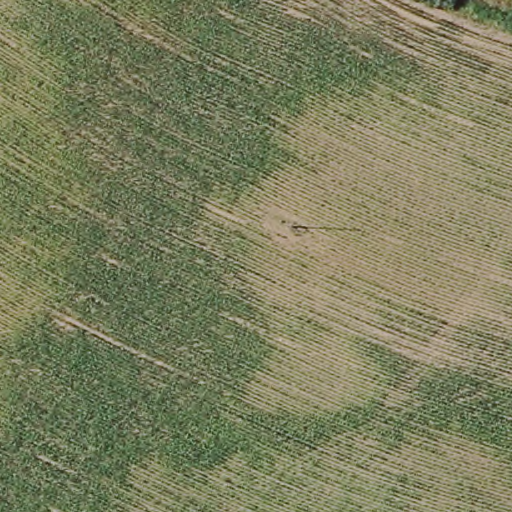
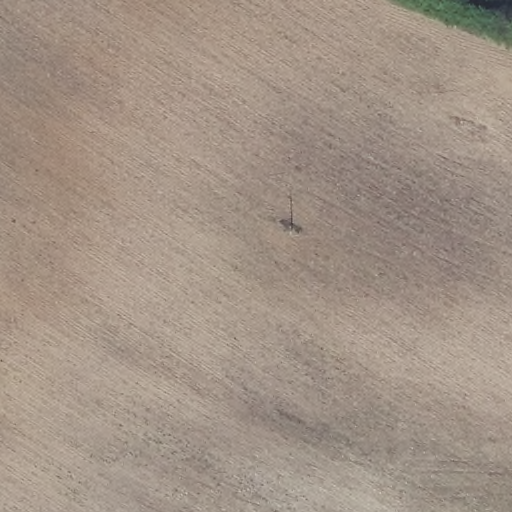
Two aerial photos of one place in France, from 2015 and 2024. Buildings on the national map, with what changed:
[]

